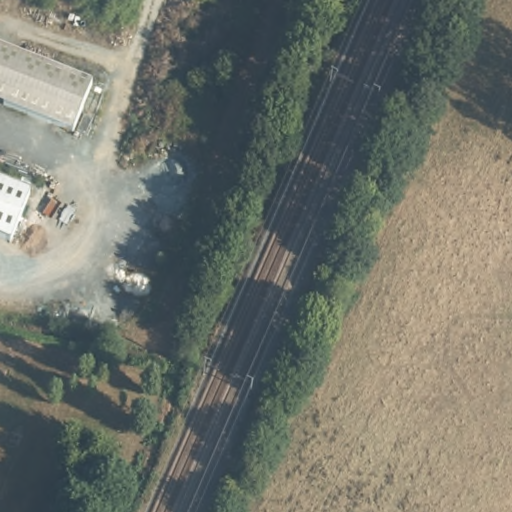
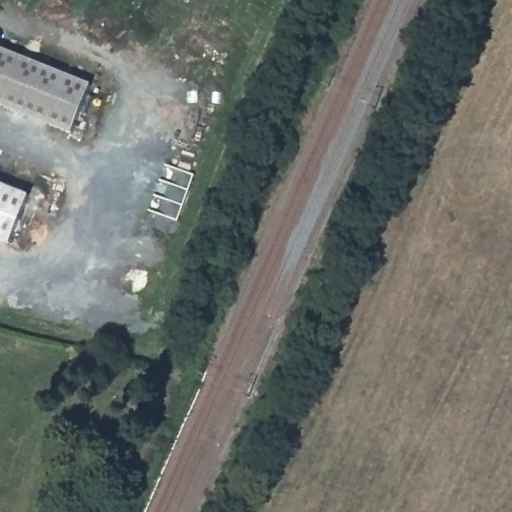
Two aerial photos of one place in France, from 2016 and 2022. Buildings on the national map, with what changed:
unchanged [(71,134),(0,107),(0,47),(91,84),(71,134)]
unchanged [(8,250),(0,246),(0,191),(27,202),(8,250)]

